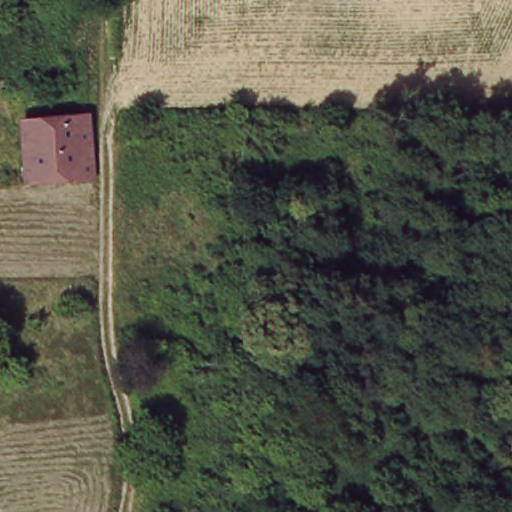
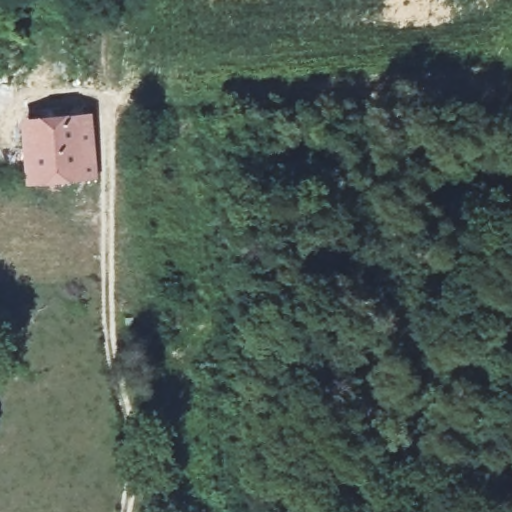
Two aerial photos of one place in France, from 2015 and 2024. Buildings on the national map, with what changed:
unchanged [(26,150),(24,121),(91,116),(91,146),(26,150)]
unchanged [(91,146),(92,181),(76,181),(76,176),(27,178),(26,150),(91,146)]

